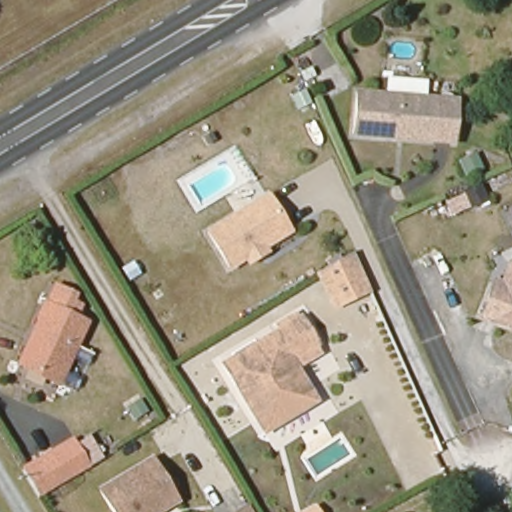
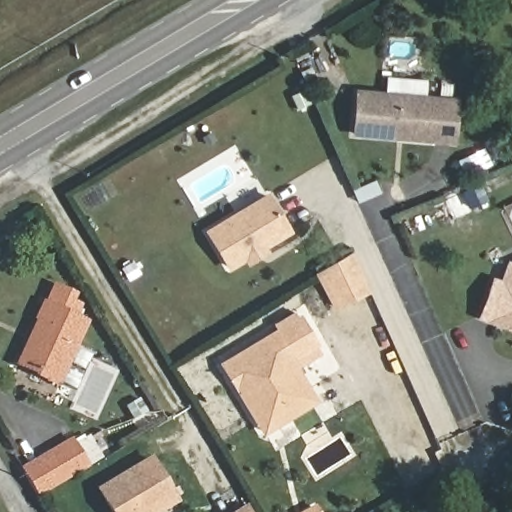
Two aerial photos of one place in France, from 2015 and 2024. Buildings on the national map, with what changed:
unchanged [(396,139),(352,134),(356,94),(385,97),(386,79),(426,83),(424,101),(455,104),(451,140),(451,145),(396,139)]
unchanged [(249,263),(246,259),(230,268),(210,233),(269,197),(290,232),(263,249),(266,253),(249,263)]
unchanged [(348,256),(365,293),(337,309),(317,275),(348,256)]
unchanged [(486,281),(495,284),(504,261),(511,264),(512,264),(512,331),(473,317),(486,281)]
unchanged [(55,283),(79,295),(74,303),(85,310),(80,318),(89,324),(61,382),(19,362),(55,283)]
unchanged [(313,337),(236,382),(221,357),(298,311),(313,337)]
unchanged [(315,403),(258,437),(234,392),(290,358),(315,403)]
unchanged [(100,436),(109,448),(88,461),(80,448),(100,436)]
unchanged [(21,469),(64,441),(80,466),(38,497),(21,469)]
unchanged [(175,501),(157,512),(112,512),(99,490),(149,458),(175,501)]
unchanged [(316,512),(310,512),(315,510),(316,512)]
unchanged [(245,512),(246,511),(247,512),(245,512)]

